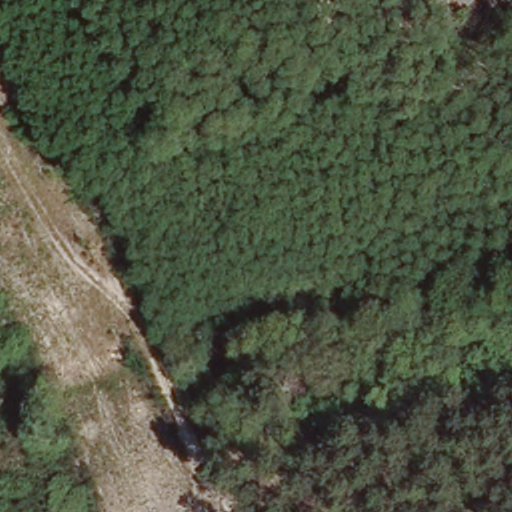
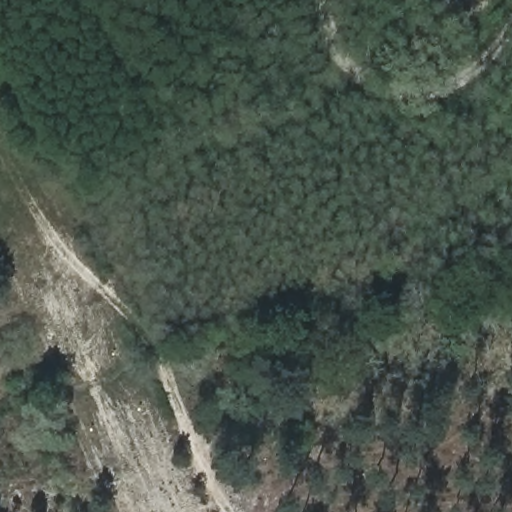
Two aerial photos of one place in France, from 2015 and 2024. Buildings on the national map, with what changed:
[]

